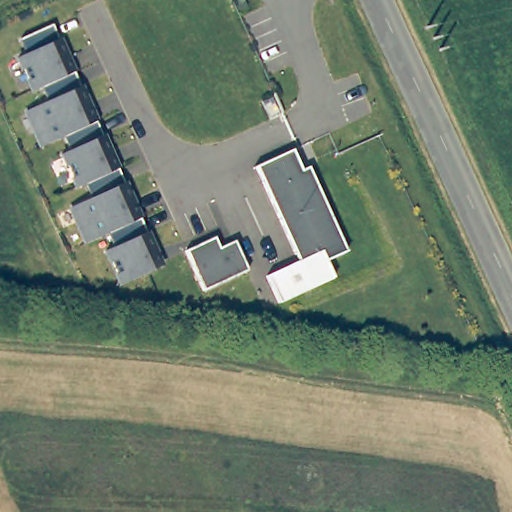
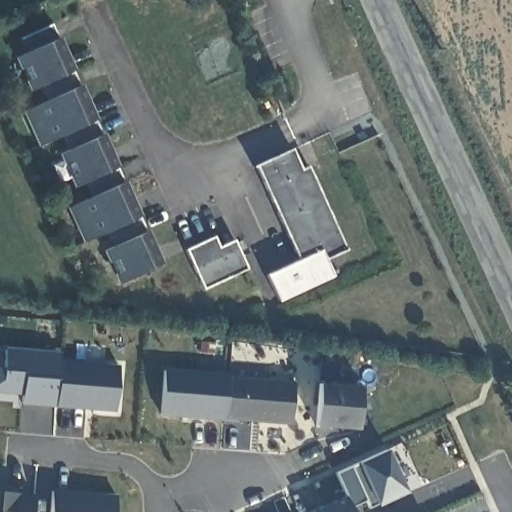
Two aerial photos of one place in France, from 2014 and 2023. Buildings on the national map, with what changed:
unchanged [(47,25),(61,56),(56,58),(58,63),(64,60),(69,72),(40,86),(28,91),(13,59),(25,53),(18,39),(47,25)]
unchanged [(84,104),(73,109),(76,115),(87,110),(92,121),(63,135),(40,145),(24,111),(47,100),(40,86),(69,72),(84,104)]
unchanged [(73,187),(58,155),(70,149),(63,135),(92,121),(106,152),(101,154),(103,159),(108,156),(114,168),(85,182),(73,187)]
unchanged [(346,250),(325,260),(333,277),(278,302),(265,275),(303,257),(300,251),(295,254),(255,167),(290,151),(299,170),(307,166),(346,250)]
unchanged [(129,200),(118,205),(121,211),(132,206),(137,217),(108,231),(85,241),(69,207),(92,196),(85,182),(114,168),(129,200)]
unchanged [(137,217),(151,248),(146,250),(148,255),(153,252),(159,264),(118,283),(103,251),(115,245),(108,231),(137,217)]
demolished [(181,281),(163,242),(213,219),(225,245),(234,241),(240,254),(181,281)]
new [(185,249),(213,236),(219,246),(234,239),(248,269),(203,289),(185,249)]
new [(20,402),(21,395),(0,393),(0,366),(3,366),(3,346),(58,351),(58,360),(53,405),(20,402)]
new [(58,360),(119,365),(114,411),(53,405),(58,360)]
new [(163,369),(293,381),(290,424),(159,414),(163,369)]
new [(358,431),(315,427),(318,383),(360,386),(358,431)]
new [(368,507),(364,500),(351,506),(353,512),(307,512),(345,495),(335,472),(357,462),(386,450),(406,493),(376,504),(368,507)]
new [(18,488),(17,493),(34,494),(32,512),(0,512),(0,487),(18,488)]
new [(115,495),(113,512),(48,512),(49,490),(115,495)]

